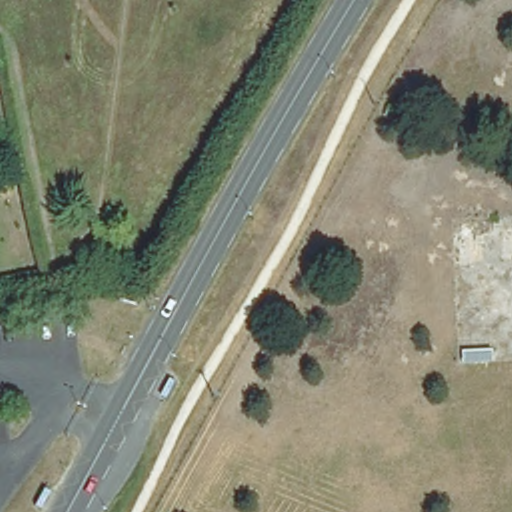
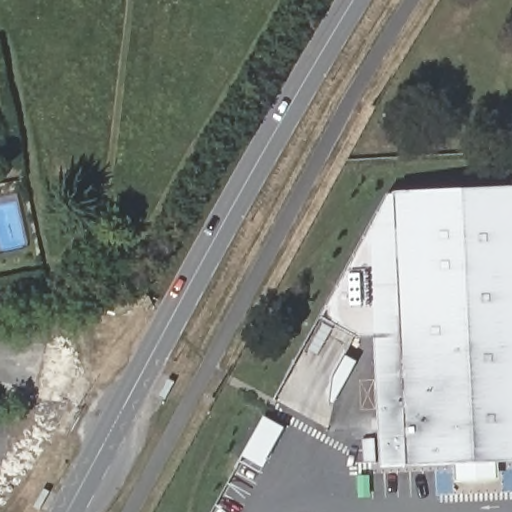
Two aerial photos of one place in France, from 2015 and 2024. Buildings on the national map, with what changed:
unchanged [(400,114),(392,125),(376,114),(384,103),(400,114)]
new [(381,467),(375,336),(357,337),(321,316),(370,223),(387,192),(394,192),(394,190),(464,188),(512,185),(512,460),(499,461),(500,480),(477,481),(455,482),(454,463),(407,466),(381,467)]
new [(243,512),(209,512),(262,415),(288,428),(243,512)]
new [(370,499),(358,499),(356,476),(368,474),(370,499)]

